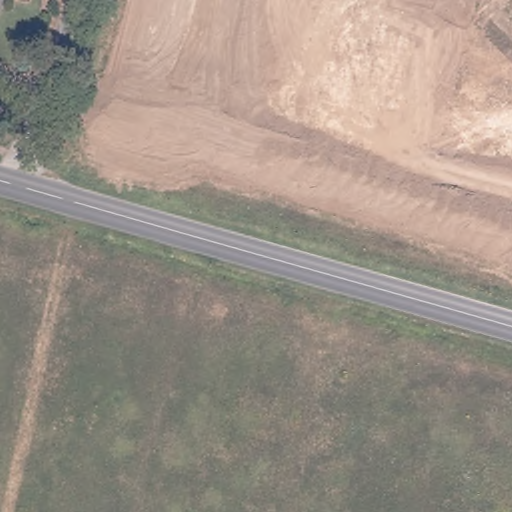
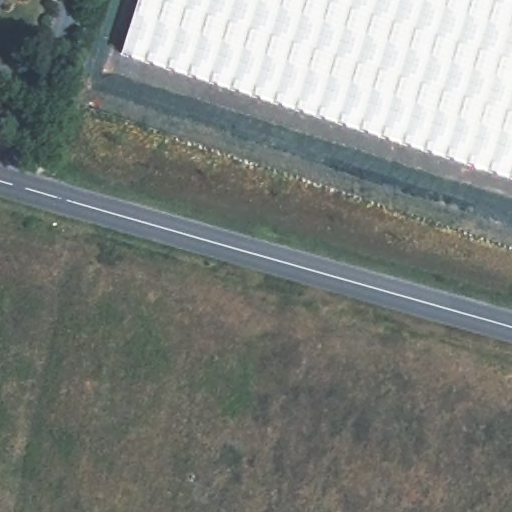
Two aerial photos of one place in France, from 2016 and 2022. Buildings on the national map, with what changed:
new [(124,53),(141,0),(512,0),(512,177),(124,53)]

